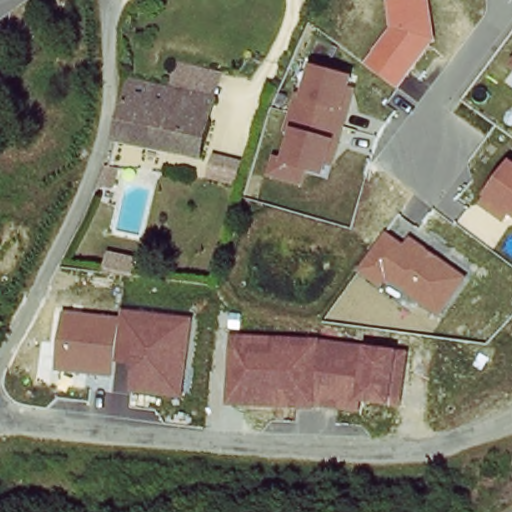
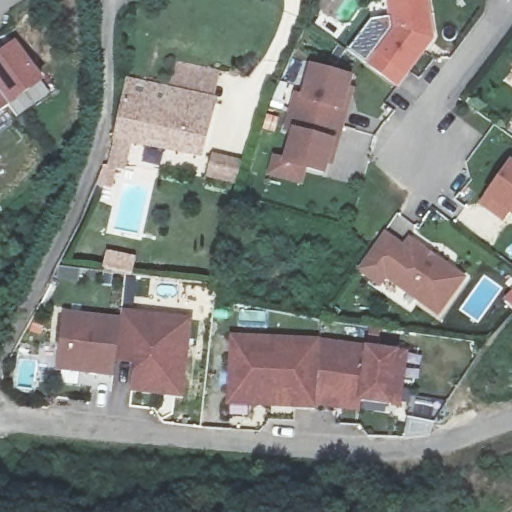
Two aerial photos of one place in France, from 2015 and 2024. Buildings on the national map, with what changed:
unchanged [(391,29),(386,0),(431,0),(436,39),(399,89),(365,64),(391,29)]
new [(44,83),(0,113),(0,48),(14,39),(44,83)]
unchanged [(168,97),(178,59),(221,71),(210,108),(168,97)]
unchanged [(351,88),(358,89),(336,167),(329,165),(325,177),(311,173),(304,187),(266,177),(274,154),(284,158),(290,133),(286,133),(296,93),(301,94),(309,64),(354,76),(351,88)]
unchanged [(210,108),(196,164),(110,142),(124,86),(168,97),(210,108)]
unchanged [(501,204),(496,213),(479,202),(509,161),(512,163),(512,213),(501,204)]
unchanged [(467,278),(438,316),(387,279),(382,288),(358,271),(386,232),(404,245),(412,237),(467,278)]
unchanged [(183,398),(130,393),(133,366),(116,364),(113,377),(56,372),(64,312),(121,319),(124,311),(194,319),(183,398)]
unchanged [(401,408),(363,403),(361,413),(318,409),(229,407),(233,335),(320,339),(409,353),(401,408)]

